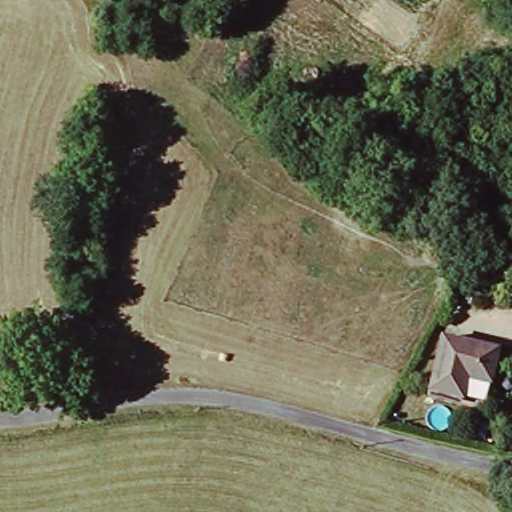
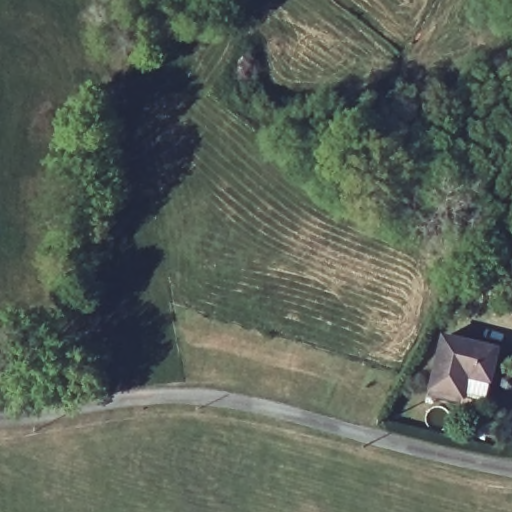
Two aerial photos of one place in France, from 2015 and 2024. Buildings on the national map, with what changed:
unchanged [(461,403),(428,396),(444,344),(498,356),(489,387),(483,408),(461,403)]

